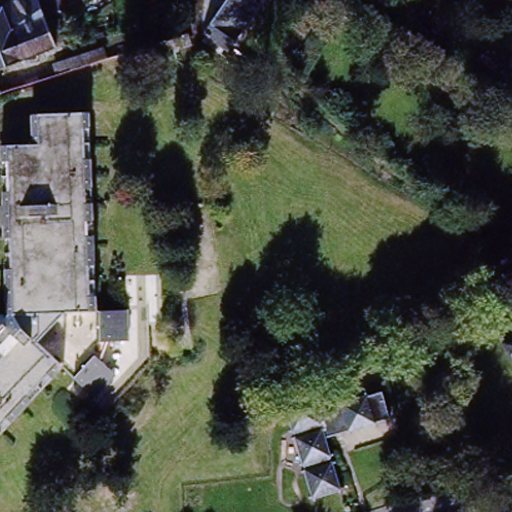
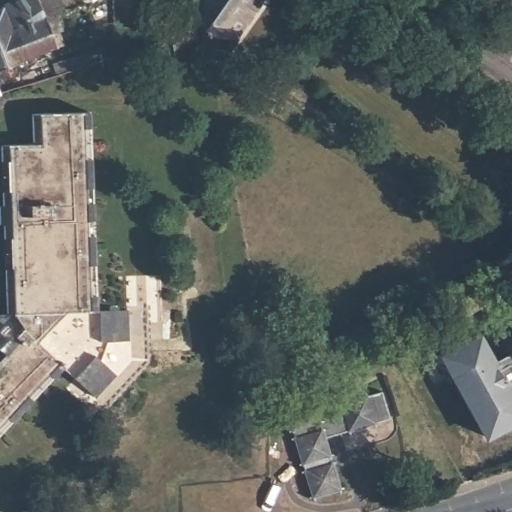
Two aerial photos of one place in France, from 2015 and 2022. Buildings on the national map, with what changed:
unchanged [(25,0),(37,0),(58,55),(0,75),(0,17),(3,15),(25,0)]
unchanged [(211,0),(236,0),(210,37),(207,36),(211,0)]
unchanged [(272,0),(232,55),(208,38),(210,37),(236,0),(272,0)]
unchanged [(132,16),(151,14),(152,29),(135,32),(132,16)]
unchanged [(0,98),(0,93),(2,97),(0,98)]
unchanged [(5,317),(5,147),(38,147),(40,118),(98,118),(96,315),(63,327),(35,360),(55,380),(0,435),(0,324),(5,317)]
unchanged [(89,411),(68,392),(55,380),(35,360),(63,327),(96,315),(101,314),(124,306),(135,333),(117,339),(95,377),(109,390),(89,411)]
new [(512,425),(485,439),(440,358),(481,336),(495,360),(507,355),(512,363),(512,425)]
unchanged [(512,363),(504,348),(512,344),(512,363)]
unchanged [(383,389),(395,415),(330,443),(319,416),(383,389)]
unchanged [(330,443),(352,494),(324,505),(286,413),(313,402),(319,416),(330,443)]

